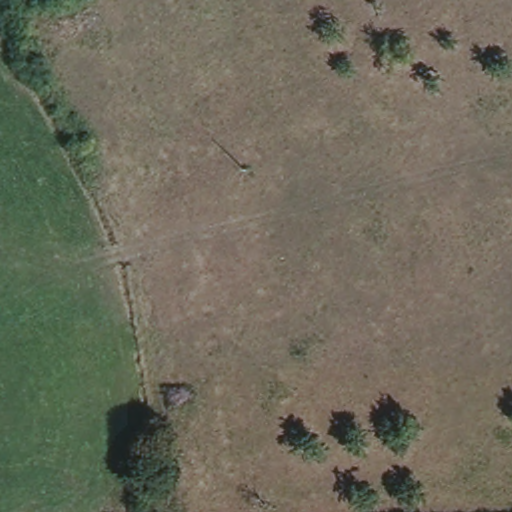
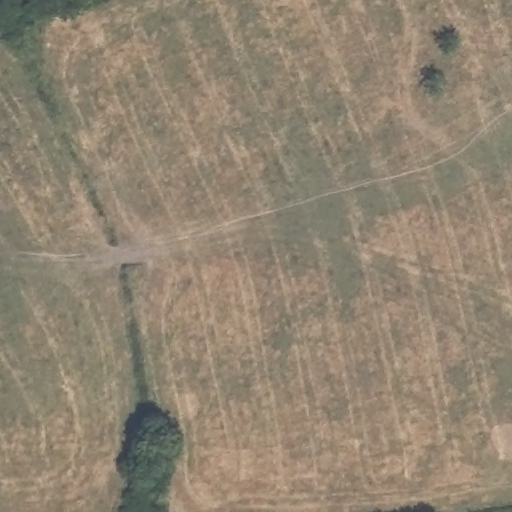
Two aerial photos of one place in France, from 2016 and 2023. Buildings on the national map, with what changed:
[]

